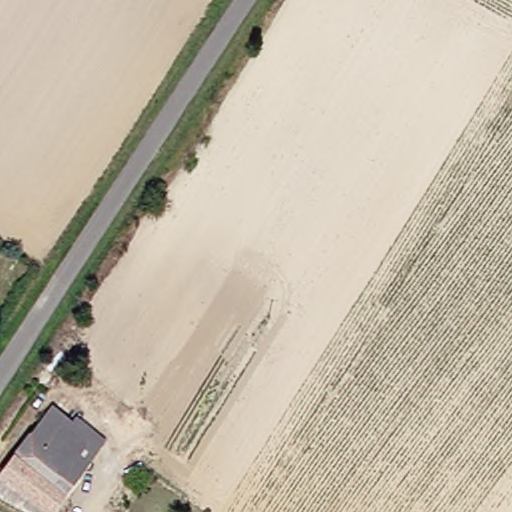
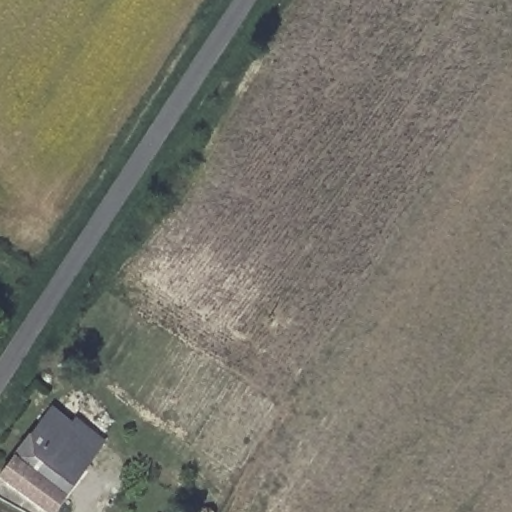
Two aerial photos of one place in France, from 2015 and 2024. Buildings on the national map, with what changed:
unchanged [(31,512),(0,488),(0,456),(39,406),(67,427),(70,422),(95,441),(75,468),(48,502),(41,512),(31,512)]

